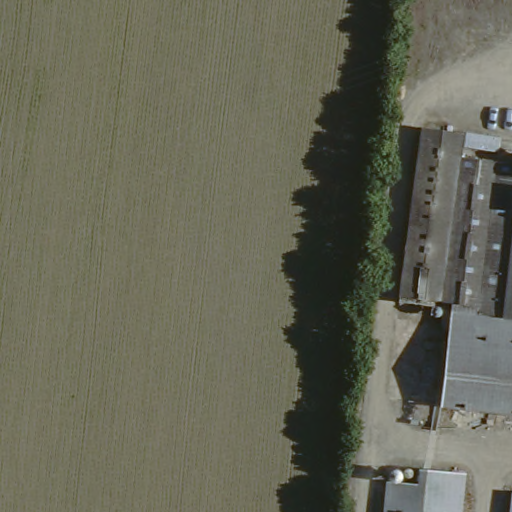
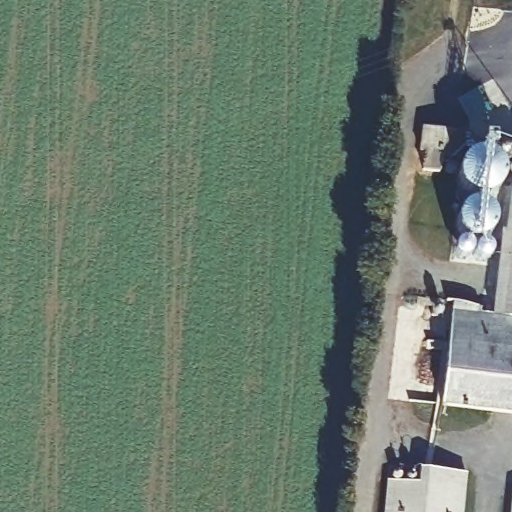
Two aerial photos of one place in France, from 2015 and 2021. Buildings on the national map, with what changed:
demolished [(512,169),(512,210),(500,313),(486,311),(458,308),(400,301),(411,204),(419,124),(419,122),(463,126),(459,161),(498,166),(512,169)]
new [(424,151),(418,151),(421,125),(458,131),(457,144),(453,174),(422,171),(424,151)]
unchanged [(512,210),(512,315),(500,313),(512,210)]
unchanged [(458,308),(486,311),(500,313),(512,315),(512,417),(446,408),(458,308)]
unchanged [(467,470),(462,512),(385,512),(390,467),(467,470)]
unchanged [(512,512),(510,512),(512,496),(512,512)]

